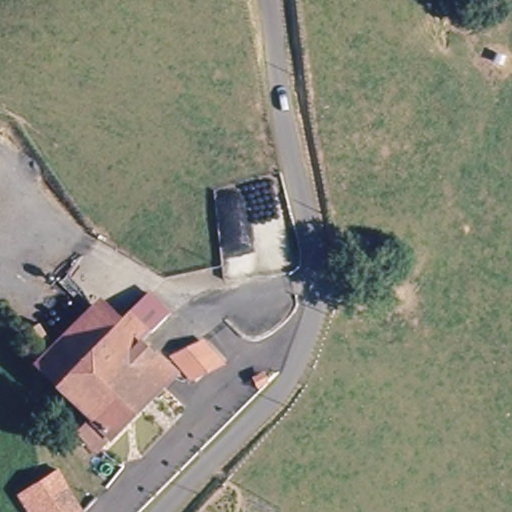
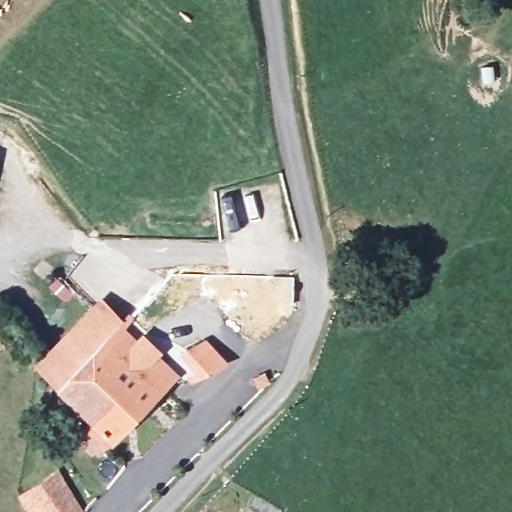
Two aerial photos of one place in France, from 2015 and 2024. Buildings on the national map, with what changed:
unchanged [(125,317),(146,296),(160,308),(167,314),(144,340),(137,347),(157,371),(199,345),(213,368),(183,387),(165,382),(97,454),(77,435),(86,424),(55,389),(62,381),(81,362),(115,328),(125,317)]
unchanged [(92,305),(115,328),(81,362),(55,341),(92,305)]
unchanged [(62,381),(37,379),(30,365),(55,341),(81,362),(62,381)]
unchanged [(50,475),(82,512),(35,512),(25,498),(50,475)]

